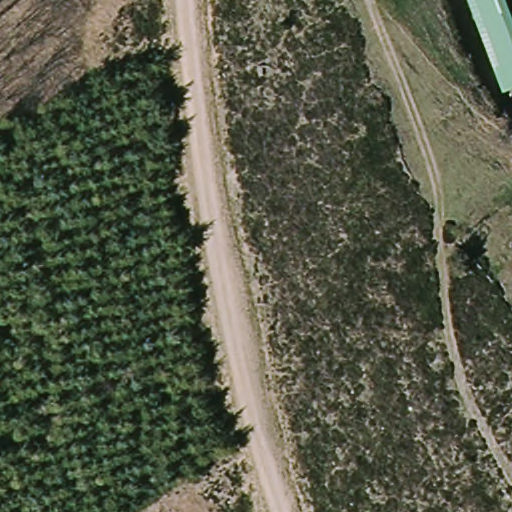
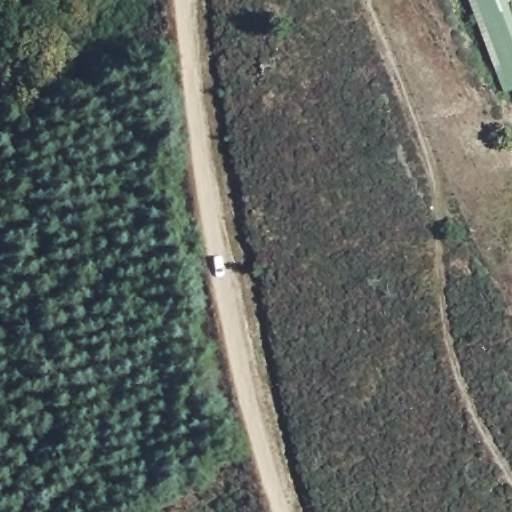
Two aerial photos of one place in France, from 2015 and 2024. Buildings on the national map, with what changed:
unchanged [(474,36),(463,0),(498,0),(512,45),(512,82),(491,88),(474,36)]

